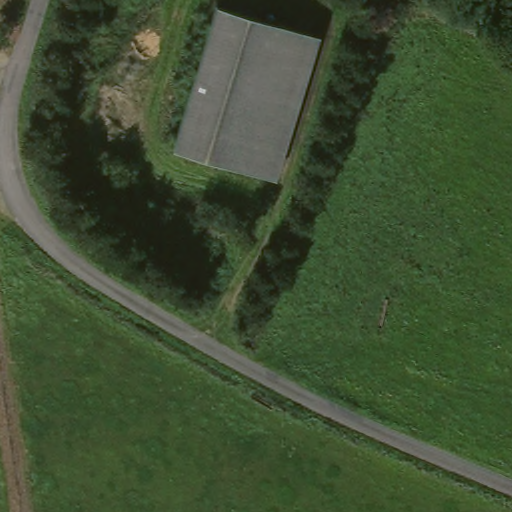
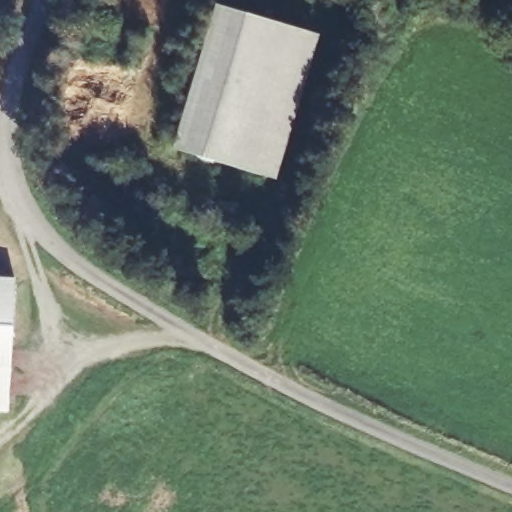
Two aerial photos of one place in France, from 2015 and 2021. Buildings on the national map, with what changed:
unchanged [(212,1),(313,28),(276,173),(175,146),(212,1)]
new [(14,279),(9,375),(0,374),(0,278),(14,279)]

